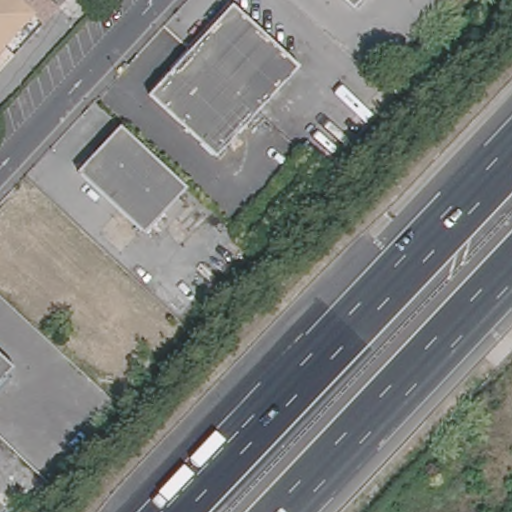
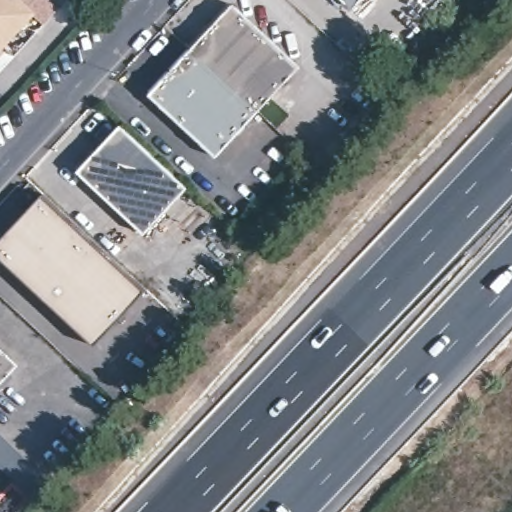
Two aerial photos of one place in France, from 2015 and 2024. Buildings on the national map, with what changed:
unchanged [(0,48),(0,0),(31,0),(38,6),(0,48)]
unchanged [(348,0),(365,0),(357,9),(348,0)]
unchanged [(301,66),(260,110),(191,45),(231,1),(301,66)]
unchanged [(260,110),(216,156),(147,93),(191,45),(260,110)]
unchanged [(77,170),(119,125),(185,186),(143,230),(77,170)]
new [(0,255),(0,242),(43,196),(145,290),(95,344),(0,255)]
unchanged [(14,367),(0,383),(0,354),(14,367)]

